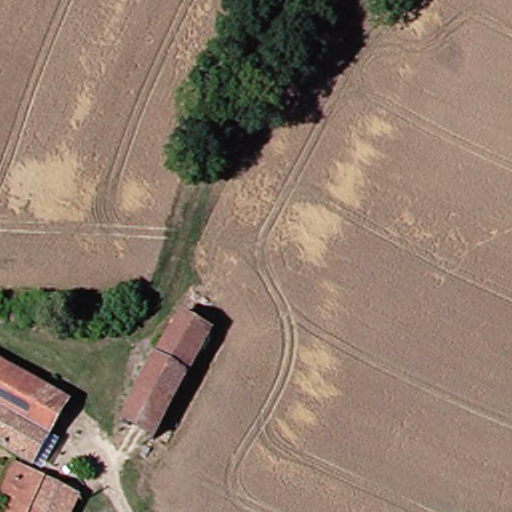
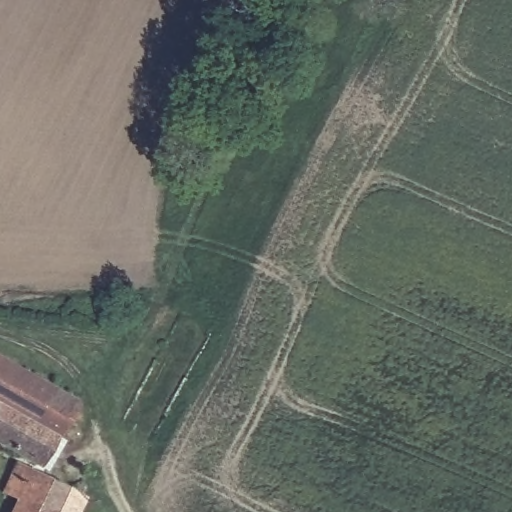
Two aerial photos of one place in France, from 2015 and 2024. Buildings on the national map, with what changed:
demolished [(152,439),(117,423),(170,315),(203,328),(152,439)]
unchanged [(0,459),(0,362),(58,396),(17,469),(0,459)]
unchanged [(83,512),(0,512),(0,501),(17,469),(87,504),(83,512)]

